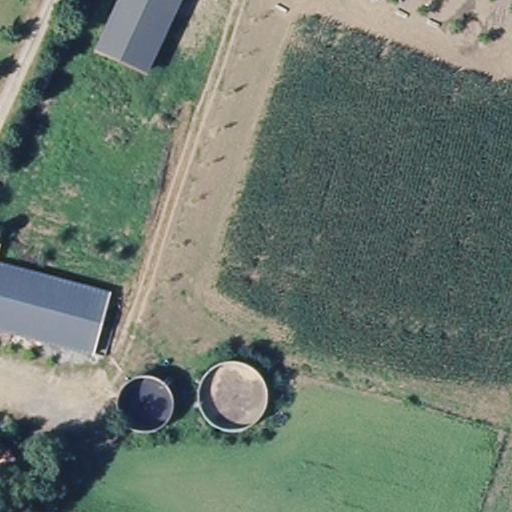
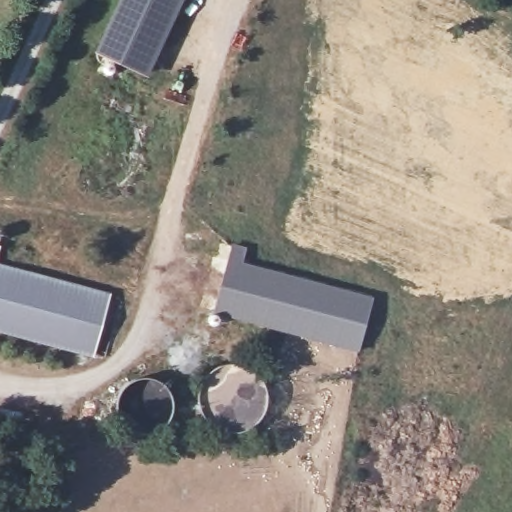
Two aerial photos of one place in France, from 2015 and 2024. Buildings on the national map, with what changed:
unchanged [(120,0),(175,0),(139,78),(94,57),(120,0)]
new [(214,311),(228,259),(231,244),(245,248),(242,262),(372,297),(358,350),(214,311)]
unchanged [(101,300),(87,353),(0,328),(0,270),(101,300)]
demolished [(135,381),(139,380),(142,380),(146,380),(150,380),(153,381),(156,382),(160,384),(162,386),(165,389),(167,391),(169,395),(171,398),(172,401),(173,405),(173,408),(172,412),(172,415),(171,419),(169,422),(167,425),(165,428),(162,430),(159,433),(156,435),(153,436),(149,436),(145,437),(142,437),(138,436),(135,435),(131,435),(128,432),(121,425),(119,422),(117,418),(116,415),(115,411),(115,408),(115,405),(116,401),(117,397),(119,394),(121,391),(123,388),(126,386),(132,382),(135,381)]

